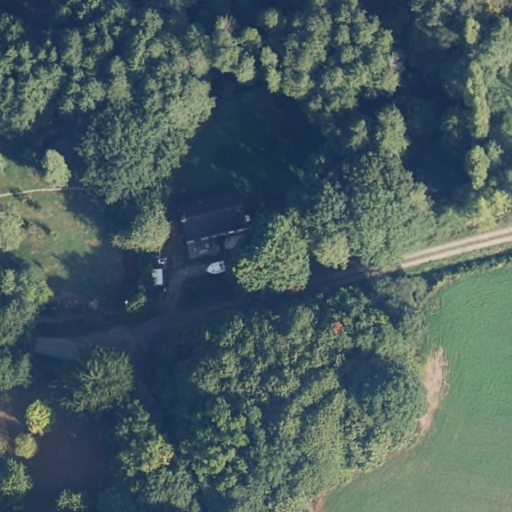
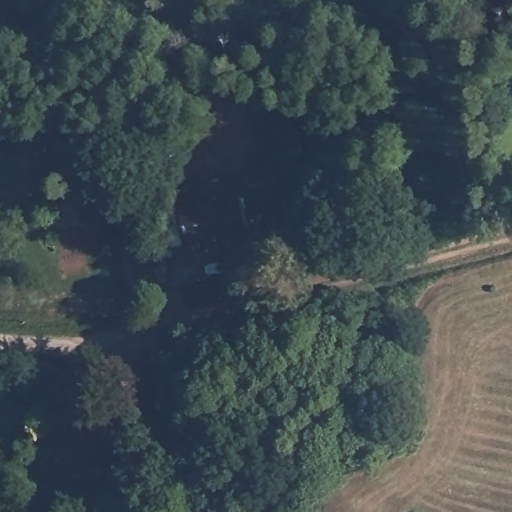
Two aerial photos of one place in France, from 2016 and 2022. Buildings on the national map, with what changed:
unchanged [(250,200),(250,235),(190,236),(189,200),(250,200)]

